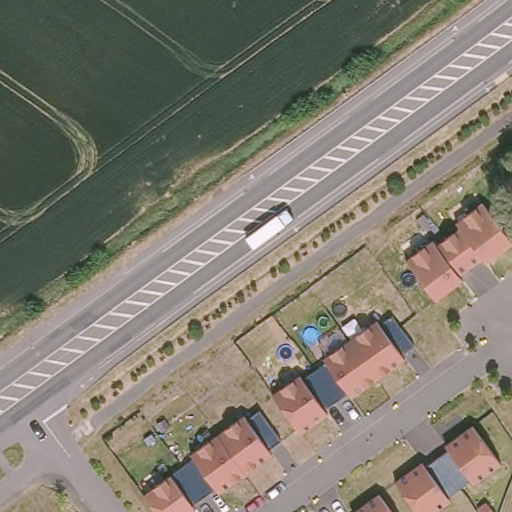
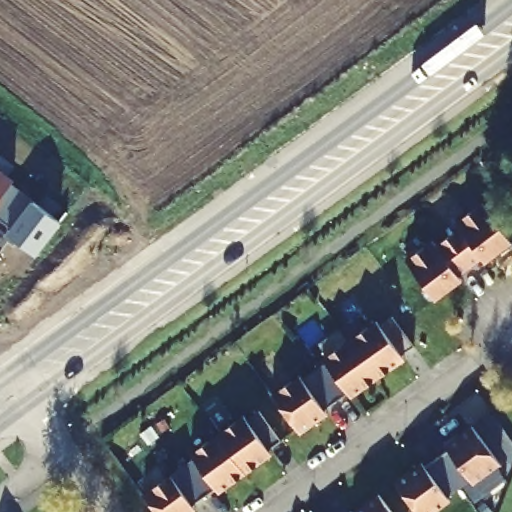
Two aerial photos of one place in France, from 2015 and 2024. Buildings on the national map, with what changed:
new [(8,233),(13,225),(0,215),(0,166),(16,178),(12,183),(32,200),(62,223),(37,255),(8,233)]
unchanged [(437,245),(460,230),(455,223),(485,202),(512,241),(512,246),(486,267),(482,260),(459,276),(463,283),(435,303),(407,259),(432,239),(437,245)]
unchanged [(300,374),(303,379),(325,364),(322,360),(377,320),(382,324),(393,314),(415,344),(401,355),(405,362),(353,401),(347,392),(325,410),(328,417),(302,437),(272,395),(300,374)]
unchanged [(155,512),(142,496),(258,409),(282,440),(269,450),(273,456),(220,496),(215,489),(193,507),(196,512),(155,512)]
unchanged [(421,462),(425,468),(447,451),(443,445),(472,423),(503,465),(474,486),(469,479),(447,497),(450,503),(437,512),(415,512),(393,482),(421,462)]
unchanged [(394,512),(351,512),(379,491),(394,512)]

